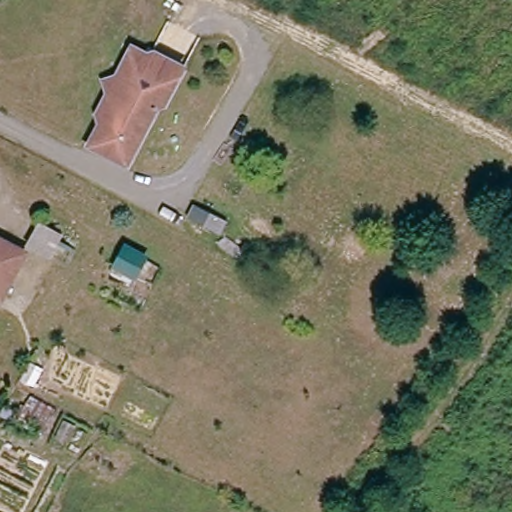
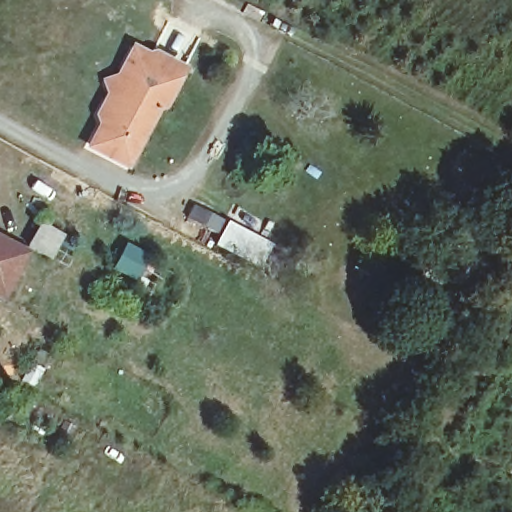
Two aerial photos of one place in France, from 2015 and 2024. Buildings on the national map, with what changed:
unchanged [(93,148),(98,137),(103,124),(100,114),(111,90),(116,80),(130,48),(144,55),(152,50),(185,66),(166,107),(154,111),(144,132),(129,165),(93,148)]
unchanged [(40,221),(63,232),(52,255),(29,244),(40,221)]
unchanged [(144,237),(136,256),(112,246),(121,227),(144,237)]
unchanged [(26,251),(4,297),(0,295),(0,239),(26,251)]

